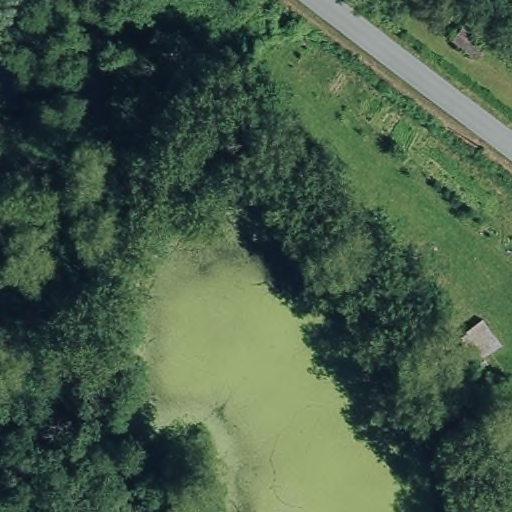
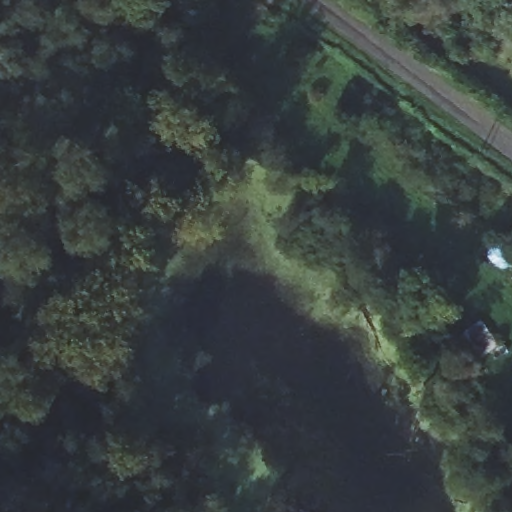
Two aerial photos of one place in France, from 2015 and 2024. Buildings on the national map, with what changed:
unchanged [(459,22),(488,43),(477,59),(448,37),(459,22)]
unchanged [(502,345),(473,359),(454,327),(478,311),(502,345)]

